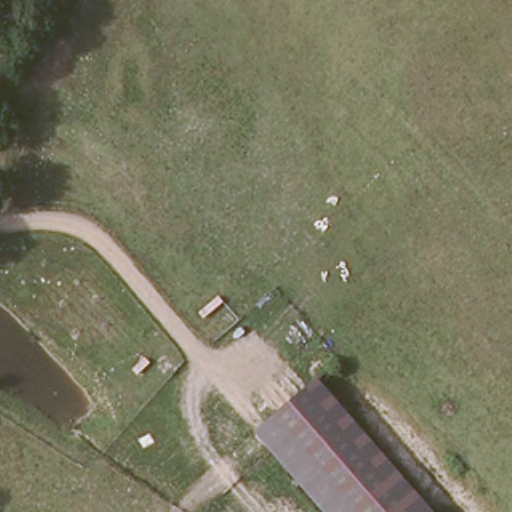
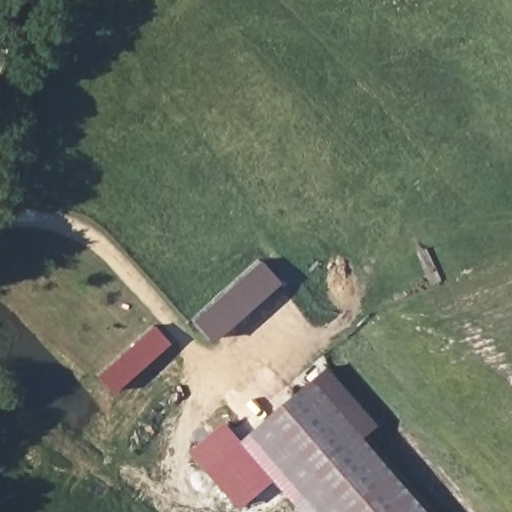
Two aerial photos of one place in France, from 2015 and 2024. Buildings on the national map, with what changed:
new [(192,315),(259,258),(278,281),(212,338),(192,315)]
new [(169,342),(115,388),(99,371),(153,323),(169,342)]
unchanged [(435,512),(326,512),(255,430),(319,377),(435,512)]
new [(255,430),(326,512),(306,512),(277,479),(243,509),(192,450),(228,420),(245,439),(255,430)]

